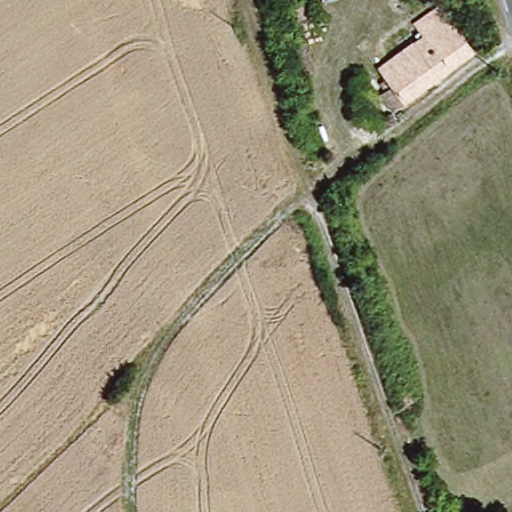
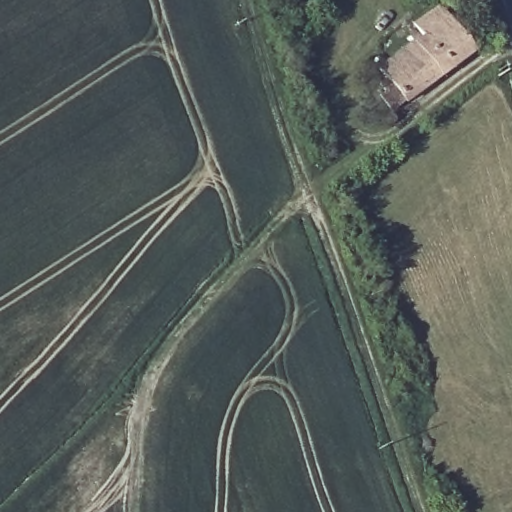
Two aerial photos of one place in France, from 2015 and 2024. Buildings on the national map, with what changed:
unchanged [(323,22),(303,30),(292,0),(322,0),(322,2),(317,4),(323,22)]
unchanged [(423,23),(448,5),(478,48),(395,110),(385,99),(387,94),(376,80),(383,77),(376,68),(397,51),(393,45),(410,32),(415,40),(426,32),(423,23)]

